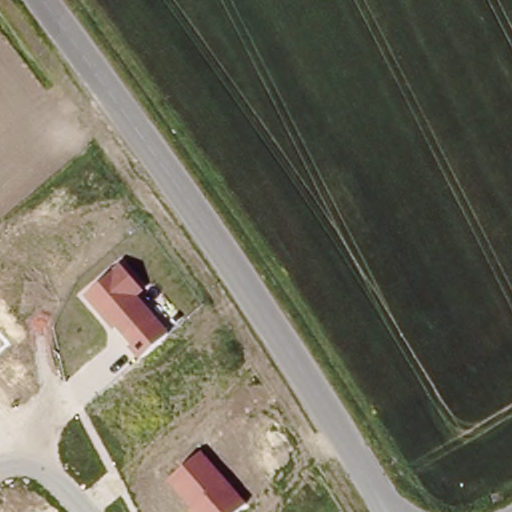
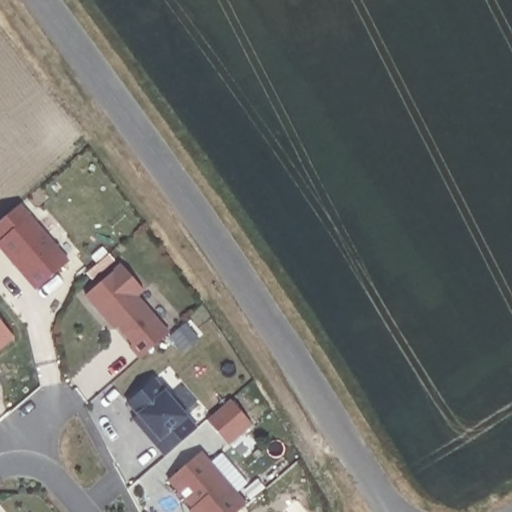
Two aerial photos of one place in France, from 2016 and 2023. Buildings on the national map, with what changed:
new [(22,203),(67,261),(35,290),(0,249),(0,241),(0,221),(22,203)]
unchanged [(140,359),(130,347),(132,345),(117,328),(115,330),(85,297),(120,267),(143,292),(137,297),(168,333),(140,359)]
unchanged [(13,337),(0,349),(0,321),(13,337)]
new [(155,379),(165,390),(190,418),(187,420),(196,429),(164,456),(142,431),(148,427),(137,414),(127,402),(155,379)]
unchanged [(237,512),(190,512),(192,509),(169,483),(200,453),(247,504),(237,512)]

